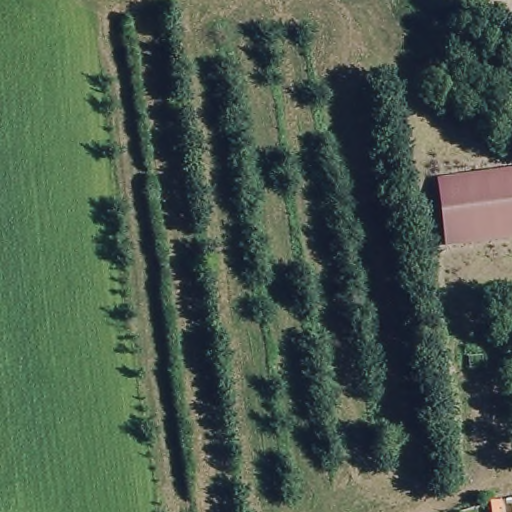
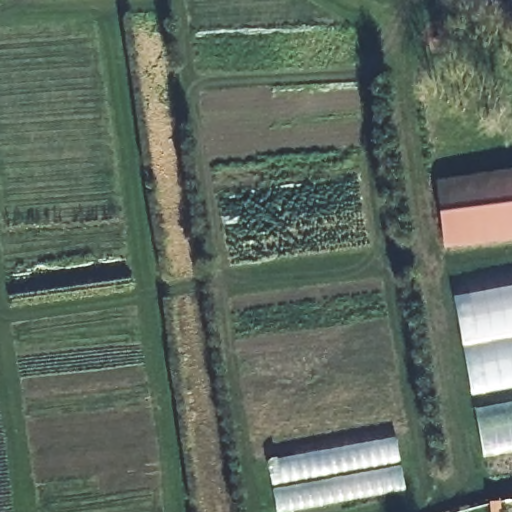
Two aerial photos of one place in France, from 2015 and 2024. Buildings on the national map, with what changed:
unchanged [(438,184),(512,174),(512,240),(445,249),(438,184)]
new [(484,460),(456,298),(512,287),(512,454),(484,460)]
new [(292,512),(277,512),(269,462),(397,440),(407,492),(292,512)]
unchanged [(500,503),(502,511),(498,511),(498,512),(491,512),(490,504),(500,503)]

